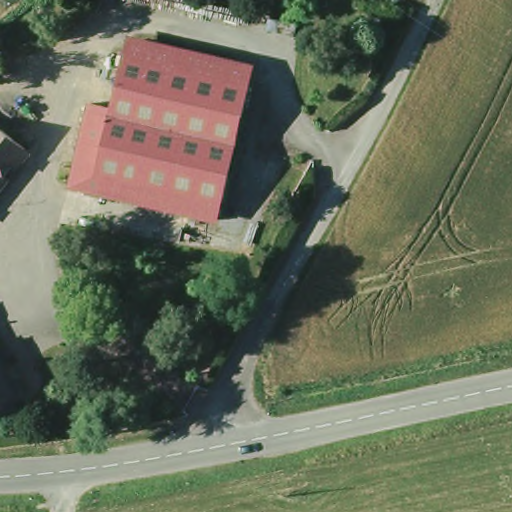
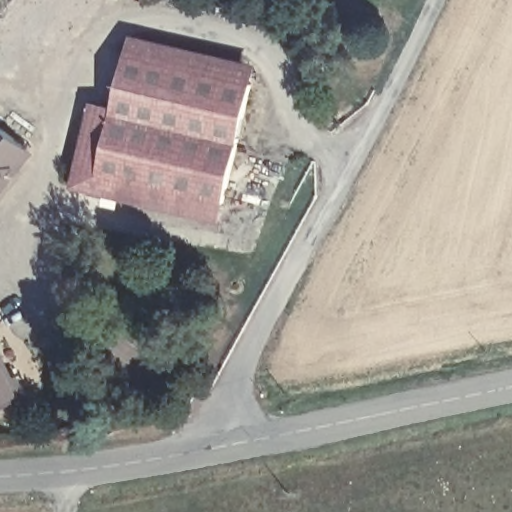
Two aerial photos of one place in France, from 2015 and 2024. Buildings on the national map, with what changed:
unchanged [(225,197),(128,176),(125,191),(76,179),(79,166),(75,165),(76,157),(81,158),(95,101),(115,105),(127,54),(251,82),(225,197)]
unchanged [(0,186),(0,137),(23,157),(0,186)]
unchanged [(15,374),(24,393),(18,396),(20,401),(0,411),(0,360),(9,377),(15,374)]

